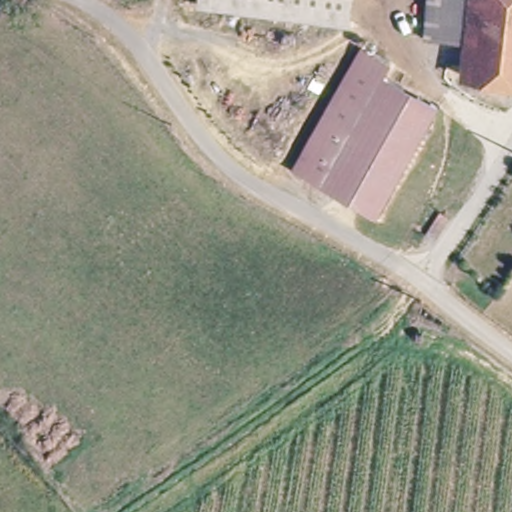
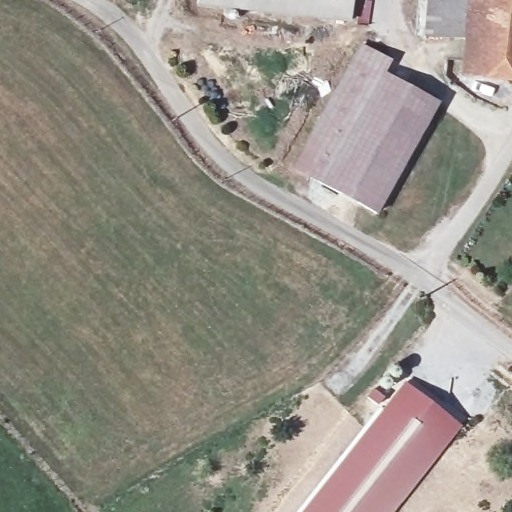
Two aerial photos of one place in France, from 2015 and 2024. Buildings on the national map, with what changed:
unchanged [(197,6),(198,0),(350,0),(347,21),(197,6)]
new [(463,38),(422,36),(426,0),(512,0),(512,82),(458,76),(463,38)]
demolished [(475,71),(475,46),(451,45),(447,45),(453,0),(512,0),(512,87),(473,83),(475,71)]
unchanged [(365,46),(380,53),(398,63),(393,71),(442,100),(380,209),(352,200),(336,190),(294,166),(302,152),(365,46)]
new [(393,512),(299,512),(402,382),(460,427),(393,512)]

